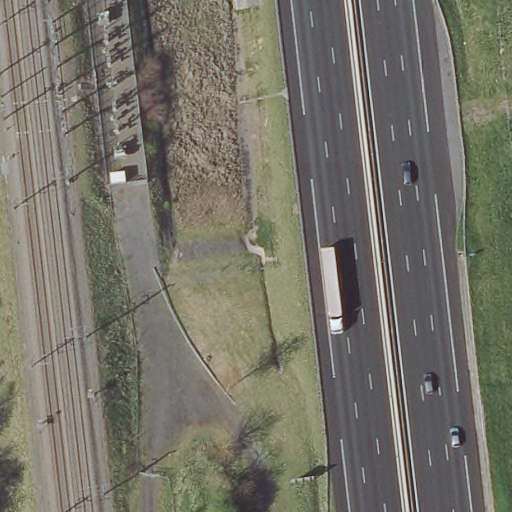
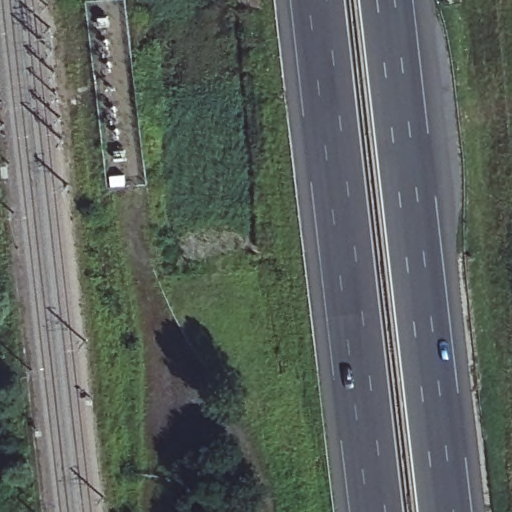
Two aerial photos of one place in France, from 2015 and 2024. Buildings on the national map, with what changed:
unchanged [(85,0),(130,0),(149,180),(109,187),(85,0)]

